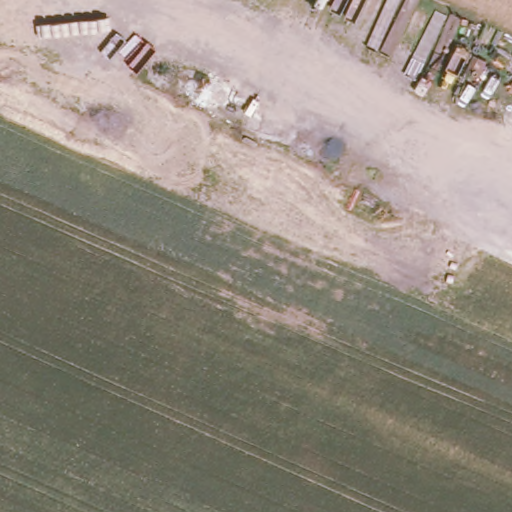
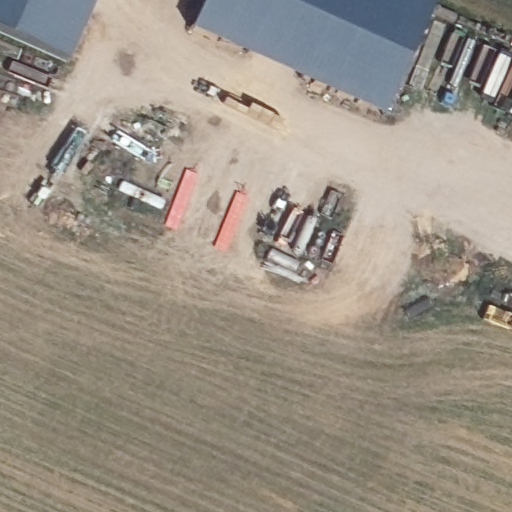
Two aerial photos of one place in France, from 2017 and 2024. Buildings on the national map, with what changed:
new [(0,43),(0,0),(100,0),(68,73),(0,43)]
new [(381,126),(189,38),(207,0),(406,0),(434,12),(381,126)]

